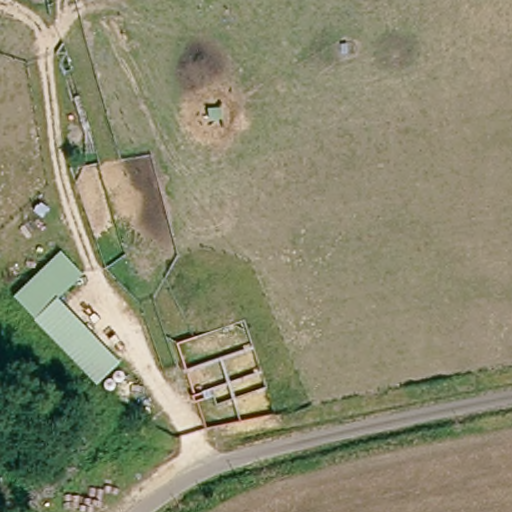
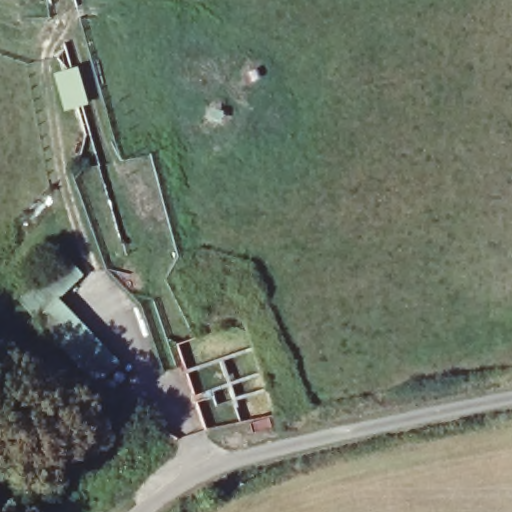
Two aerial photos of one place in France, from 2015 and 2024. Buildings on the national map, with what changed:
unchanged [(60,251),(81,274),(56,299),(119,362),(96,384),(11,295),(60,251)]

